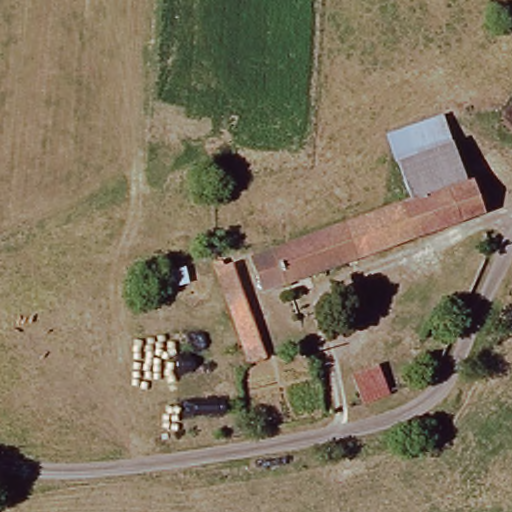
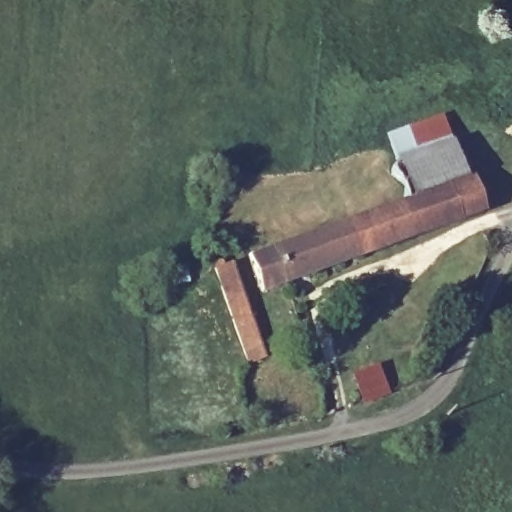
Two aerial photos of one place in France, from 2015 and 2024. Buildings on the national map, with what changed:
unchanged [(466,180),(479,178),(491,215),(264,296),(246,254),(406,202),(395,163),(421,157),(407,129),(442,117),(466,180)]
unchanged [(233,252),(265,365),(247,371),(216,256),(233,252)]
unchanged [(188,285),(168,285),(166,268),(187,268),(188,285)]
unchanged [(379,366),(389,394),(363,403),(352,373),(379,366)]

